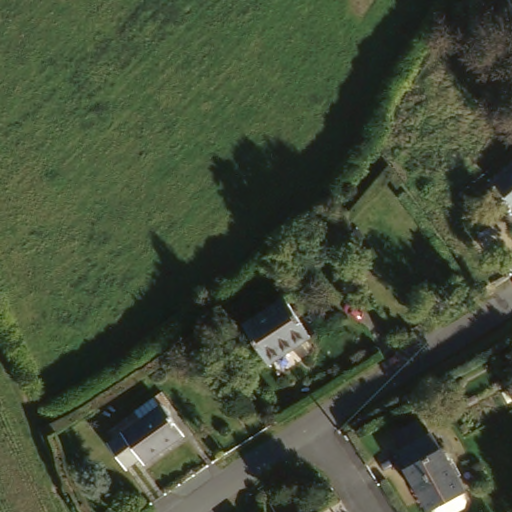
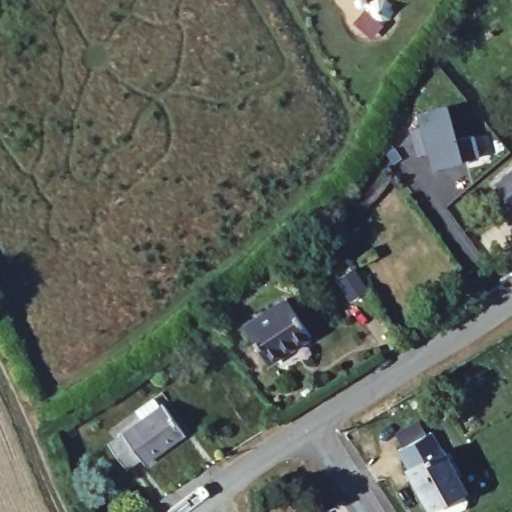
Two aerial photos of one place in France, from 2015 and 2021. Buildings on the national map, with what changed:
new [(456,137),(473,134),(479,156),(462,161),(432,170),(427,152),(415,155),(409,130),(420,126),(417,114),(447,105),(456,137)]
unchanged [(512,167),(512,198),(503,187),(498,191),(497,192),(494,187),(498,182),(497,181),(512,167)]
unchanged [(291,300),(314,337),(272,363),(249,327),(291,300)]
unchanged [(233,345),(221,352),(210,336),(222,328),(233,345)]
unchanged [(146,425),(140,416),(158,405),(163,413),(171,408),(191,438),(150,466),(146,461),(131,471),(115,447),(146,425)]
unchanged [(464,512),(441,512),(439,508),(437,510),(415,470),(417,468),(407,451),(437,434),(447,452),(449,452),(471,490),(476,498),(473,507),(464,512)]

